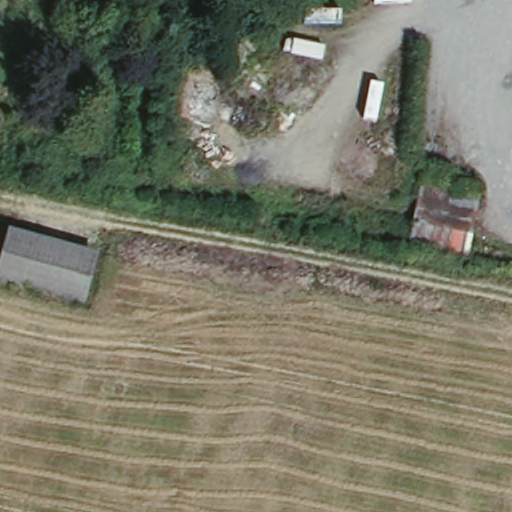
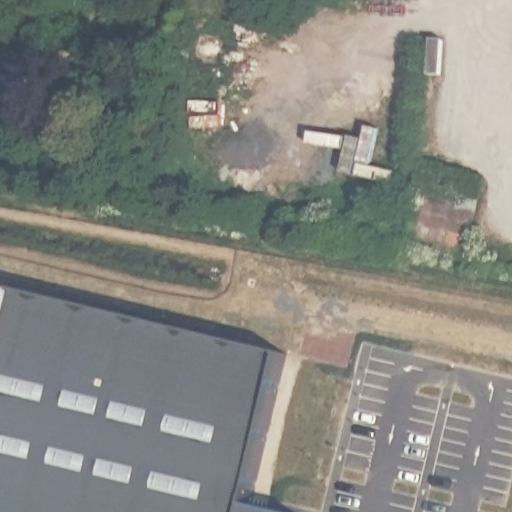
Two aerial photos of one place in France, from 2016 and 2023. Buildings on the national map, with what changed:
unchanged [(410,239),(420,184),(483,195),(473,250),(410,239)]
demolished [(0,261),(9,229),(102,254),(87,305),(0,282),(0,261)]
new [(278,484),(308,492),(303,512),(0,512),(0,289),(306,363),(278,484)]

